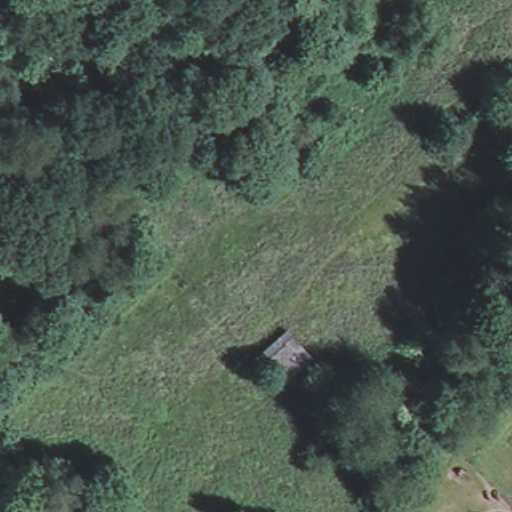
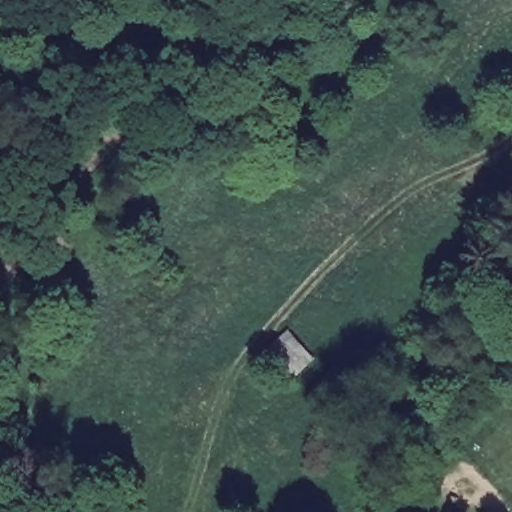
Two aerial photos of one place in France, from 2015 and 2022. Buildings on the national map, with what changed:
unchanged [(254,360),(288,328),(312,357),(281,385),(254,360)]

